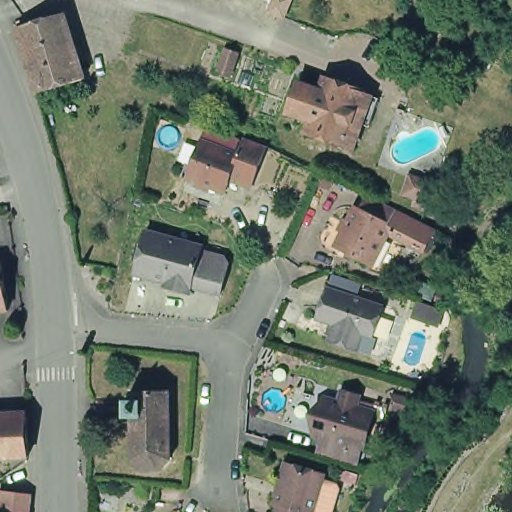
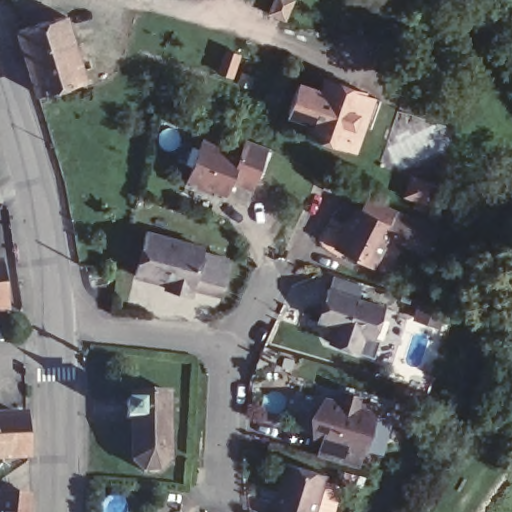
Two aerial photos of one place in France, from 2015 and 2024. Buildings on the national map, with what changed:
unchanged [(22,25),(69,12),(88,75),(42,89),(22,25)]
unchanged [(239,56),(231,78),(217,74),(225,52),(239,56)]
unchanged [(345,152),(344,153),(304,139),(307,127),(281,116),(292,84),(320,93),(324,84),(362,96),(362,100),(379,104),(370,133),(362,131),(354,154),(345,152)]
unchanged [(254,189),(232,180),(227,194),(190,179),(205,139),(241,154),(247,138),(269,146),(254,189)]
unchanged [(432,184),(425,202),(402,193),(410,175),(432,184)]
unchanged [(327,251),(321,245),(318,238),(329,220),(345,229),(358,205),(364,208),(370,195),(397,209),(432,226),(435,228),(425,246),(393,229),(375,263),(337,244),(332,253),(327,251)]
unchanged [(205,247),(229,252),(232,259),(225,290),(195,282),(192,289),(167,282),(169,277),(137,269),(149,226),(206,241),(205,247)]
unchanged [(12,311),(0,312),(0,263),(5,262),(12,311)]
unchanged [(386,300),(375,331),(367,328),(360,344),(332,334),(337,319),(320,312),(332,282),(386,300)]
unchanged [(367,460),(322,444),(300,414),(325,395),(345,400),(348,389),(383,403),(367,460)]
unchanged [(161,471),(147,471),(135,460),(135,417),(130,417),(130,402),(135,402),(135,392),(173,391),(175,458),(161,471)]
unchanged [(0,458),(0,419),(26,418),(28,457),(0,458)]
unchanged [(282,505),(277,504),(289,463),(327,474),(316,512),(280,512),(282,505)]
unchanged [(0,498),(7,498),(9,493),(14,493),(39,495),(37,512),(0,512),(0,498)]

